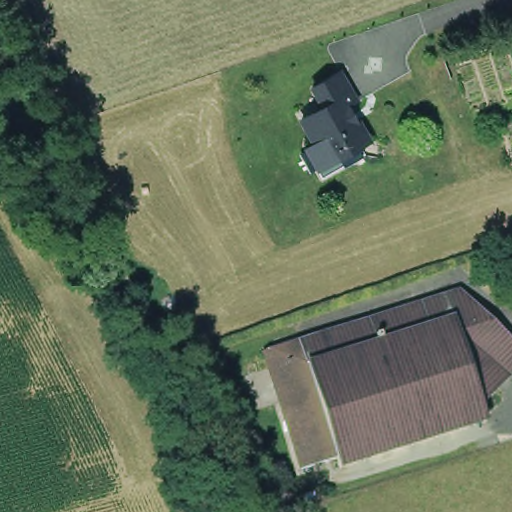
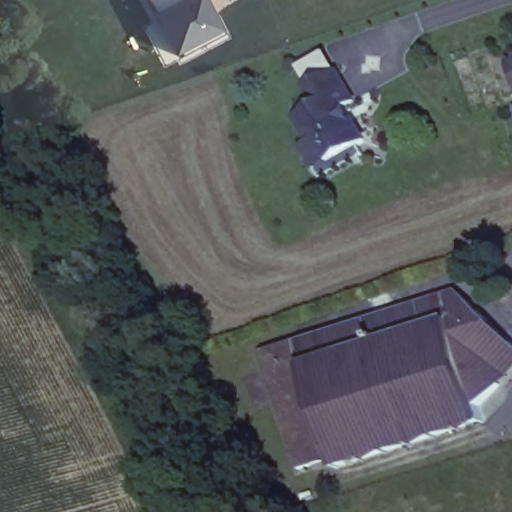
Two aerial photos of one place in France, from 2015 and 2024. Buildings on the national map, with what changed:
new [(162,17),(157,19),(147,0),(206,0),(212,11),(217,7),(232,37),(183,61),(162,17)]
unchanged [(343,100),(350,115),(353,114),(362,134),(324,153),(313,132),(310,135),(297,110),(320,99),(310,79),(340,64),(341,68),(353,95),(343,100)]
unchanged [(512,371),(504,379),(482,401),(485,414),(342,463),(340,455),(304,467),(266,353),(301,342),(324,335),(463,289),(512,338),(512,371)]

